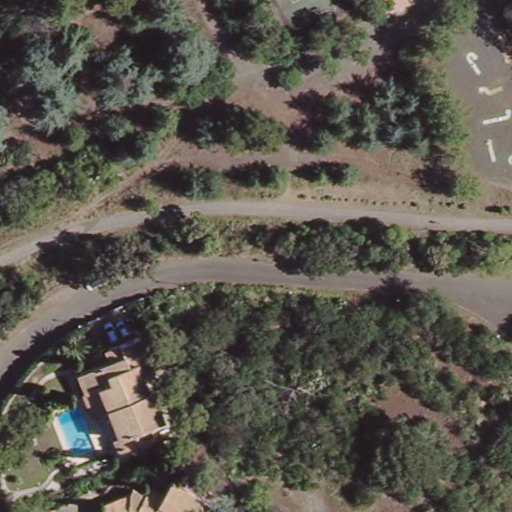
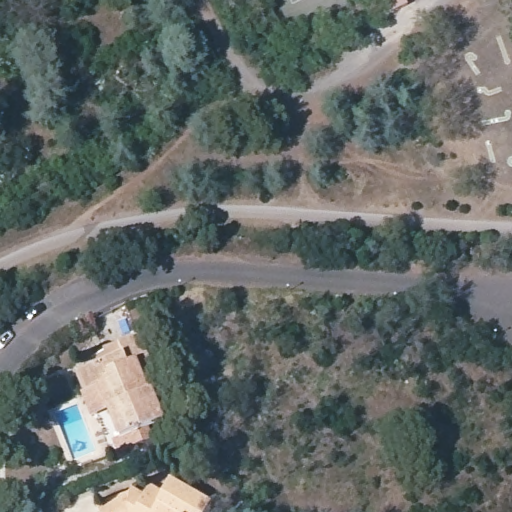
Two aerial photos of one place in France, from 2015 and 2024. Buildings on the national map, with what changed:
unchanged [(111,436),(120,432),(108,405),(91,412),(80,389),(84,388),(75,368),(110,354),(106,345),(138,333),(154,370),(143,374),(148,385),(151,384),(164,415),(137,425),(143,439),(125,445),(117,448),(111,436)]
unchanged [(182,512),(152,512),(159,500),(182,512)]
unchanged [(130,512),(116,512),(119,507),(130,512)]

